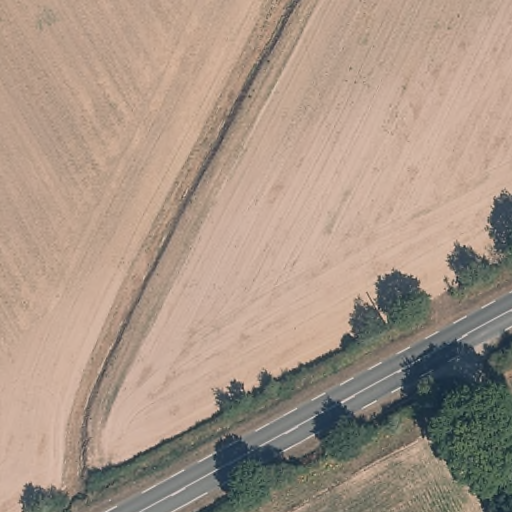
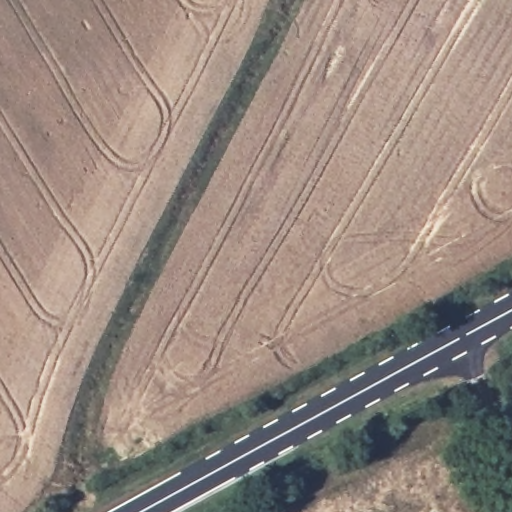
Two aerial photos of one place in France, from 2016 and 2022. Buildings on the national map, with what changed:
[]

